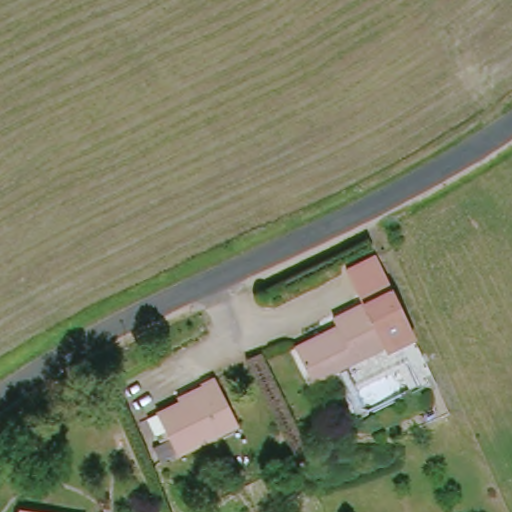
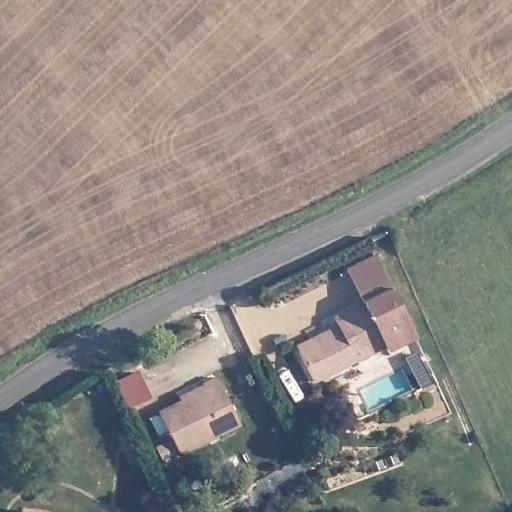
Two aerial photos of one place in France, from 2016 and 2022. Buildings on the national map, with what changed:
unchanged [(422,348),(392,361),(389,355),(319,388),(304,356),(345,337),(341,325),(371,313),(356,279),(386,266),(422,348)]
unchanged [(236,427),(177,455),(158,416),(204,394),(200,385),(215,378),(236,427)]
unchanged [(40,512),(30,512),(31,510),(40,512)]

